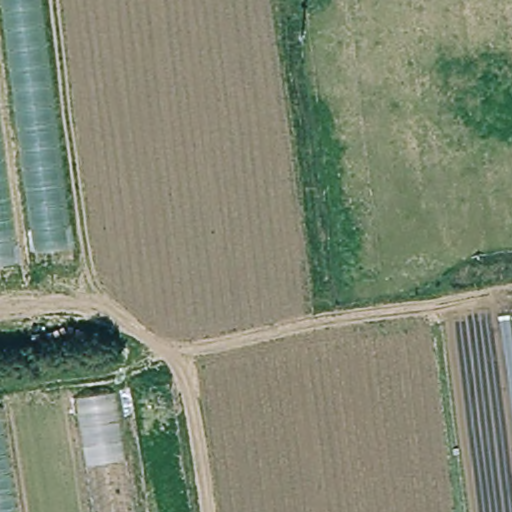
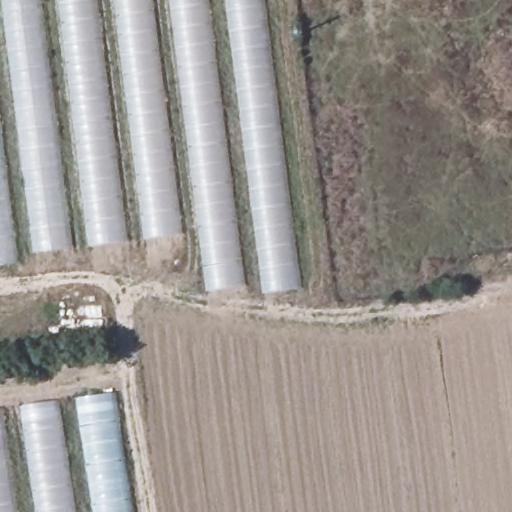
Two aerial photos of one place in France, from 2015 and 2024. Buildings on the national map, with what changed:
unchanged [(38,255),(5,0),(40,0),(73,250),(38,255)]
new [(92,249),(61,0),(96,0),(126,244),(92,249)]
new [(147,240),(116,0),(152,0),(182,234),(147,240)]
new [(209,292),(172,0),(208,0),(246,286),(209,292)]
new [(265,295),(228,0),(263,0),(302,290),(265,295)]
unchanged [(0,266),(0,107),(21,262),(0,266)]
unchanged [(133,391),(152,512),(0,512),(0,411),(133,391)]

